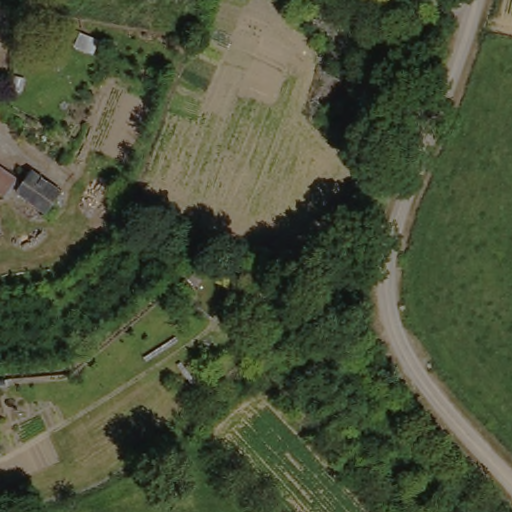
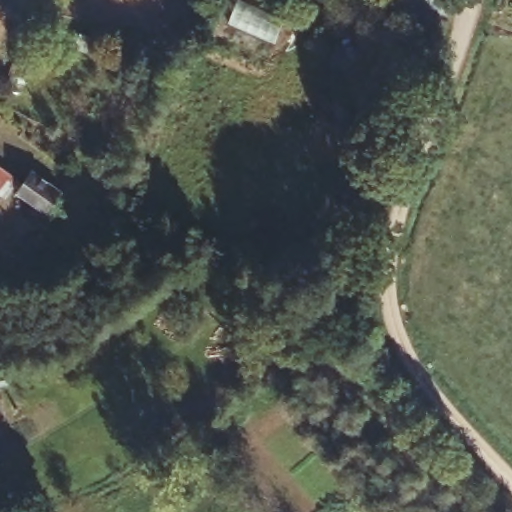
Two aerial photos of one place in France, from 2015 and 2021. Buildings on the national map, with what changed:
unchanged [(0,166),(57,200),(41,217),(0,192),(0,166)]

